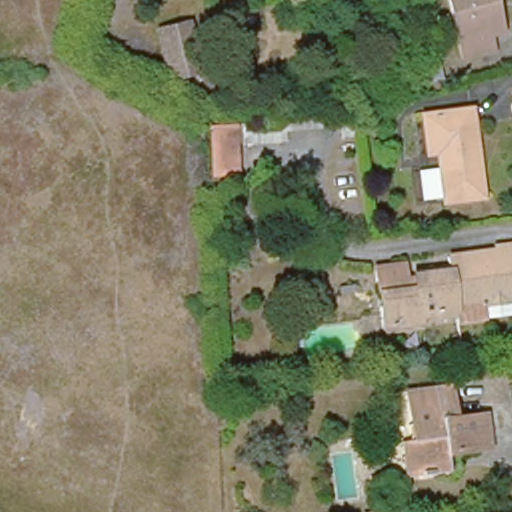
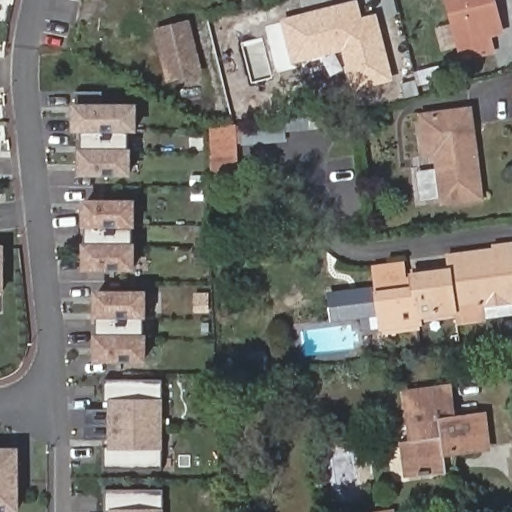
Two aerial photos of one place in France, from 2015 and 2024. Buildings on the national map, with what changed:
new [(353,90),(342,52),(293,63),(280,18),(356,0),(359,0),(363,17),(377,13),(392,81),(353,90)]
unchanged [(403,19),(392,21),(387,2),(398,0),(409,0),(411,8),(422,6),(426,19),(405,24),(403,19)]
unchanged [(484,0),(489,26),(482,28),(486,43),(458,49),(445,0),(484,0)]
unchanged [(171,79),(160,32),(190,25),(200,73),(171,79)]
new [(133,176),(79,177),(78,149),(82,149),(82,132),(74,132),(74,104),(77,104),(77,92),(104,92),(107,103),(136,103),(137,133),(128,133),(129,148),(132,148),(133,176)]
unchanged [(432,149),(425,150),(418,114),(464,105),(479,194),(441,199),(432,149)]
unchanged [(321,129),(286,133),(285,144),(239,147),(242,183),(212,184),(207,126),(319,116),(321,129)]
new [(136,271),(82,272),(82,244),(87,244),(88,228),(83,228),(83,200),(136,199),(137,228),(132,228),(132,243),(137,243),(136,271)]
new [(4,245),(5,294),(0,294),(0,245),(4,245)]
unchanged [(492,299),(455,305),(455,309),(420,314),(421,320),(384,324),(380,292),(417,286),(415,272),(450,268),(449,260),(448,252),(460,251),(512,245),(512,302),(492,304),(492,299)]
unchanged [(406,254),(409,273),(415,272),(417,286),(380,292),(375,258),(406,254)]
new [(380,292),(383,315),(330,322),(326,292),(379,286),(380,292)]
new [(146,362),(94,362),(94,335),(99,335),(98,320),(95,320),(94,292),(147,291),(147,319),(143,319),(144,334),(147,334),(146,362)]
unchanged [(446,462),(433,465),(433,468),(419,470),(418,466),(409,467),(404,435),(411,433),(404,387),(448,380),(453,412),(483,407),(486,428),(487,440),(469,443),(454,445),(457,460),(446,462)]
new [(108,447),(108,440),(85,439),(85,409),(109,409),(109,400),(105,400),(105,381),(162,381),(162,398),(162,450),(162,469),(104,469),(104,447),(108,447)]
new [(19,447),(20,512),(0,512),(0,448),(19,447)]
new [(109,511),(106,511),(107,490),(162,489),(162,508),(163,512),(110,512),(109,511)]
unchanged [(390,511),(390,512),(387,512),(390,511)]

